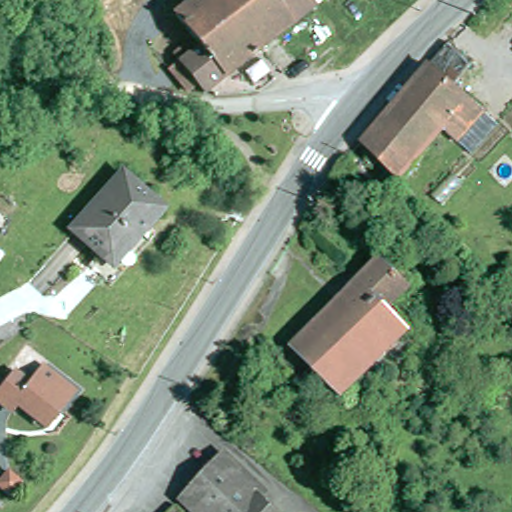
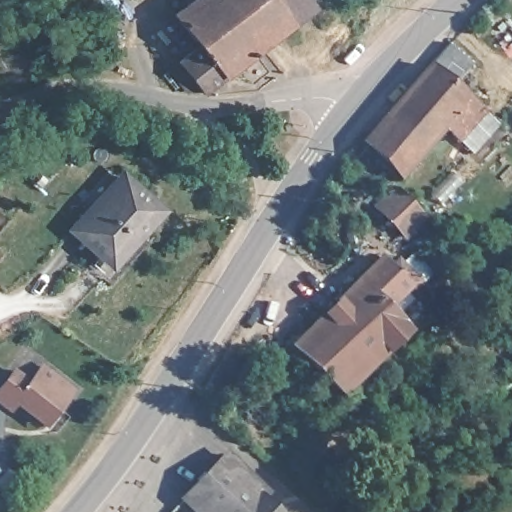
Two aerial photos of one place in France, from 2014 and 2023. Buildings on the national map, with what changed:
unchanged [(208,98),(200,88),(200,87),(182,67),(183,63),(179,59),(190,51),(193,48),(197,54),(198,54),(204,49),(202,47),(179,19),(180,19),(190,11),(192,9),(188,4),(194,0),(311,0),(320,10),(208,98)]
unchanged [(401,183),(365,148),(446,52),(450,47),(473,69),(455,91),(483,116),(461,140),(457,145),(445,132),(401,183)]
unchanged [(75,233),(121,182),(158,215),(132,244),(112,266),(110,265),(75,233)]
new [(400,189),(427,219),(406,240),(378,211),(400,189)]
demolished [(10,259),(0,271),(0,251),(10,259)]
unchanged [(389,308),(410,330),(331,409),(315,392),(326,381),(293,347),(382,258),(396,271),(404,263),(411,270),(403,278),(411,286),(389,308)]
unchanged [(11,415),(0,406),(0,395),(15,376),(31,389),(45,373),(71,394),(45,428),(17,406),(11,415)]
unchanged [(189,503),(231,460),(270,497),(265,503),(274,512),(198,512),(189,503)]

